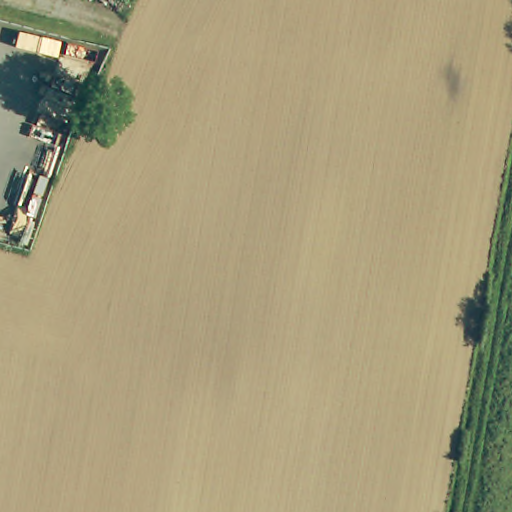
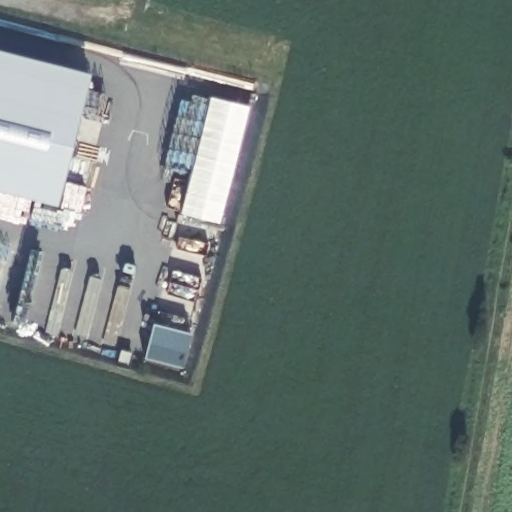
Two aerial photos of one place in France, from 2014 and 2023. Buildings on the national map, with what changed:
new [(58,204),(0,190),(0,49),(90,72),(58,204)]
new [(220,223),(180,213),(209,95),(250,106),(220,223)]
new [(183,367),(145,357),(154,324),(192,334),(183,367)]

